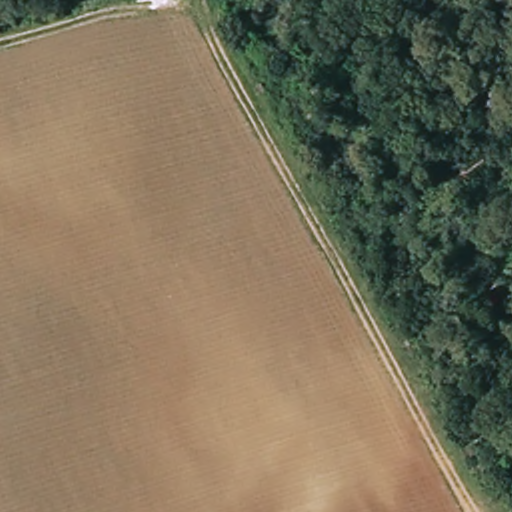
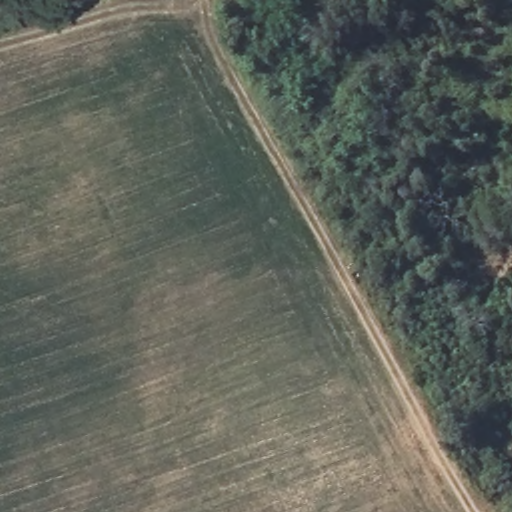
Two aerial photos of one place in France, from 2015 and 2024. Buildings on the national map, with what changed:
[]

